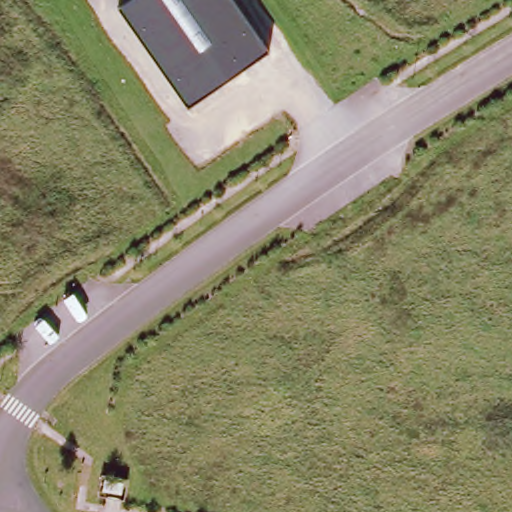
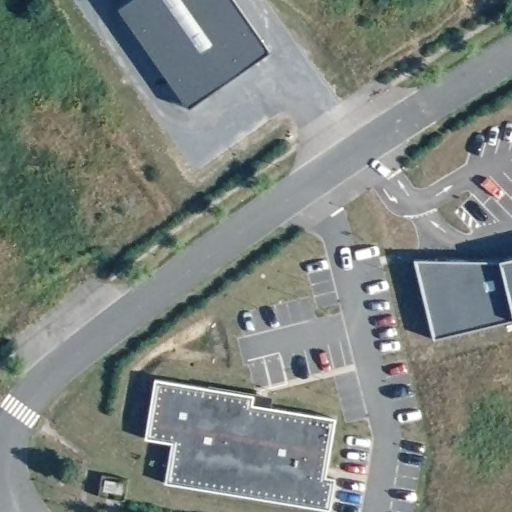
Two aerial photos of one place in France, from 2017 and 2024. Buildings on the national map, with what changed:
unchanged [(234,0),(243,14),(272,55),(241,76),(190,112),(182,101),(145,47),(120,11),(135,0),(234,0)]
new [(433,338),(413,258),(501,262),(512,308),(512,319),(433,338)]
new [(512,259),(512,308),(501,262),(512,259)]
new [(336,428),(321,512),(280,512),(151,487),(168,392),(336,428)]
unchanged [(107,474),(133,479),(130,500),(103,496),(107,474)]

